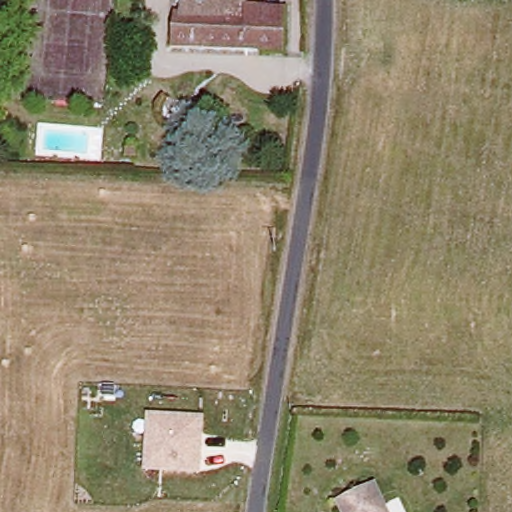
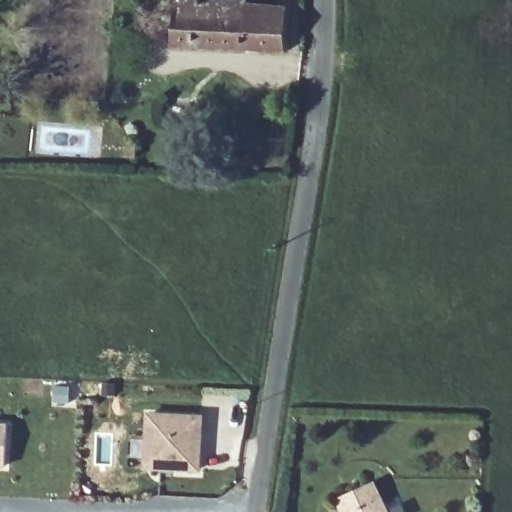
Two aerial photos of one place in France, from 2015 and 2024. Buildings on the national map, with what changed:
unchanged [(284,7),(280,54),(169,47),(171,18),(178,18),(179,0),(250,0),(249,4),(284,7)]
unchanged [(204,415),(200,475),(144,471),(147,411),(204,415)]
new [(9,427),(6,468),(0,468),(0,426),(9,427)]
unchanged [(389,512),(347,512),(341,499),(360,489),(375,482),(389,512)]

